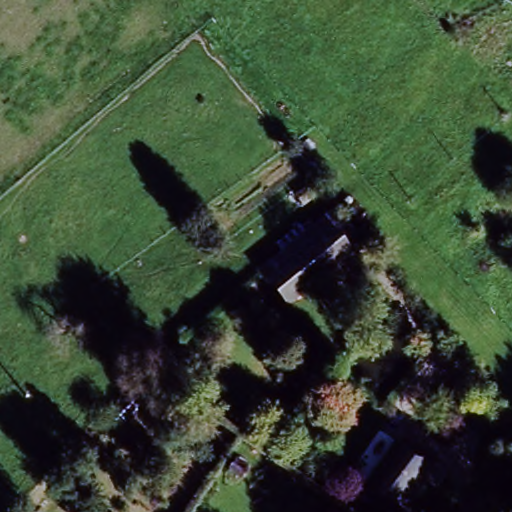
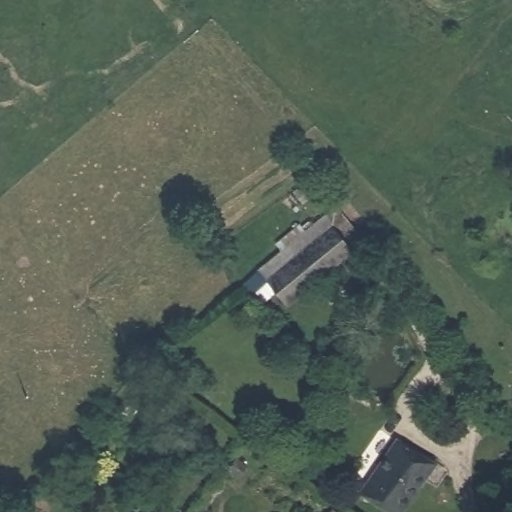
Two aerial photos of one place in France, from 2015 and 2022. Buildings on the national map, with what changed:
unchanged [(340,210),(369,244),(306,298),(277,263),(340,210)]
unchanged [(362,495),(394,446),(427,467),(398,512),(388,512),(362,495)]

